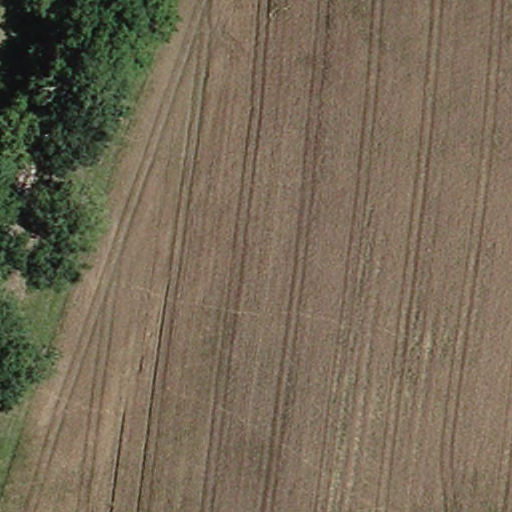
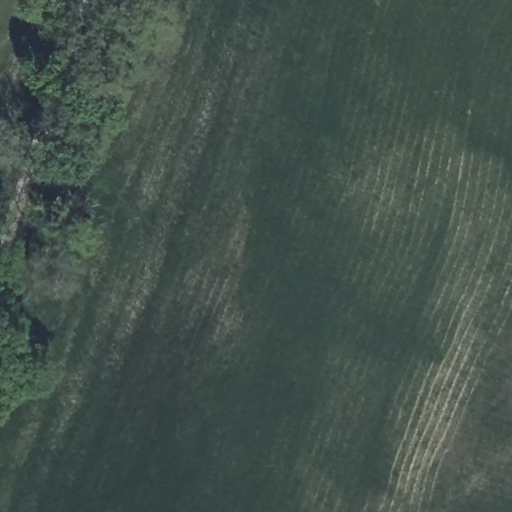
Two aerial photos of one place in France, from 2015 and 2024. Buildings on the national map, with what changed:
[]

